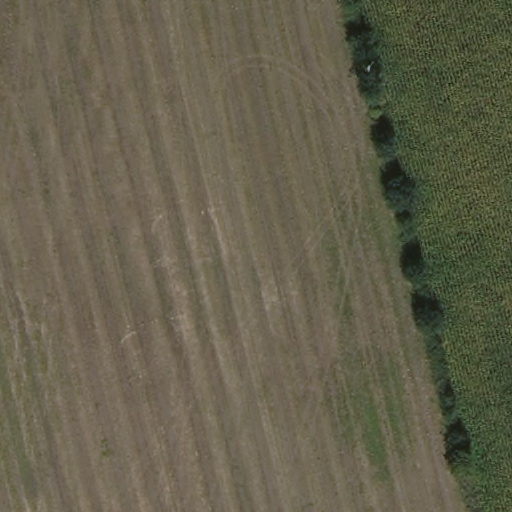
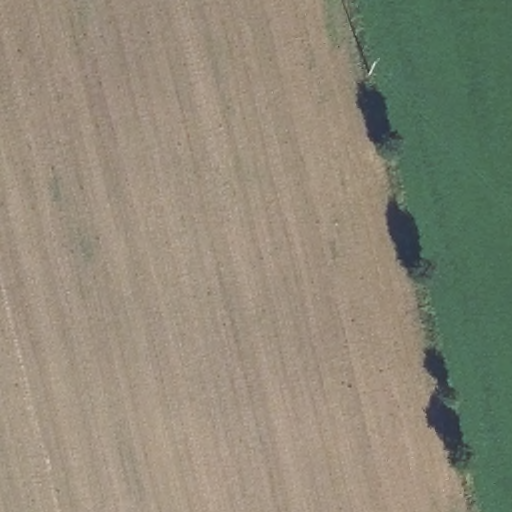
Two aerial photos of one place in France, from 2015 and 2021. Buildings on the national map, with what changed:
[]

